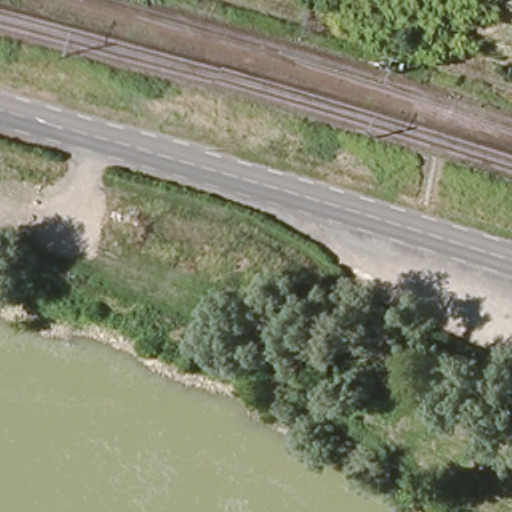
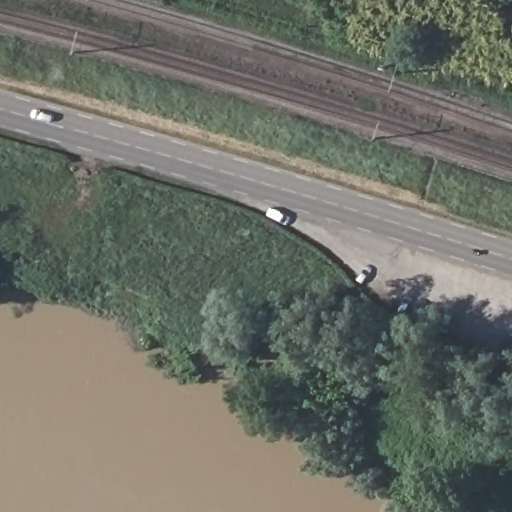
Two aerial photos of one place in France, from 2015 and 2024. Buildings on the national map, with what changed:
unchanged [(139,273),(161,283),(154,297),(133,286),(139,273)]

